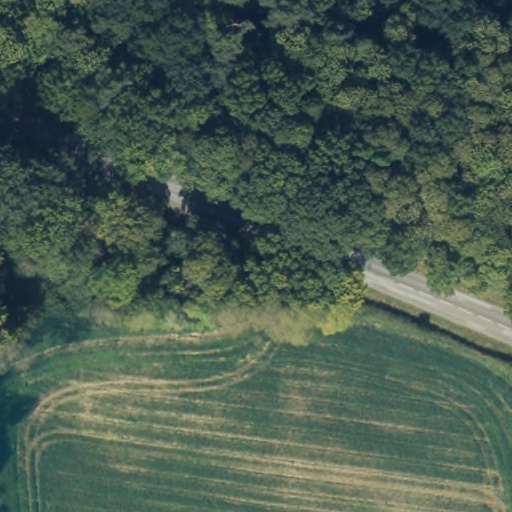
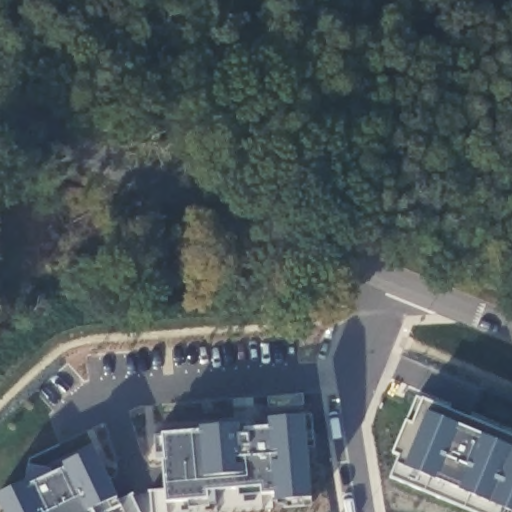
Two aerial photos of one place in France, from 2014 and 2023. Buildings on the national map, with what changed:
new [(419,400),(512,438),(512,512),(463,512),(385,478),(419,400)]
new [(312,499),(277,502),(276,495),(262,496),(261,488),(209,494),(210,501),(166,506),(162,464),(165,464),(162,435),(200,432),(200,429),(239,425),(249,418),(258,429),(270,428),(270,420),(305,417),(312,499)]
new [(93,510),(94,512),(5,512),(0,503),(0,495),(29,482),(29,467),(43,466),(51,469),(54,474),(66,468),(65,465),(95,450),(117,499),(93,510)]

